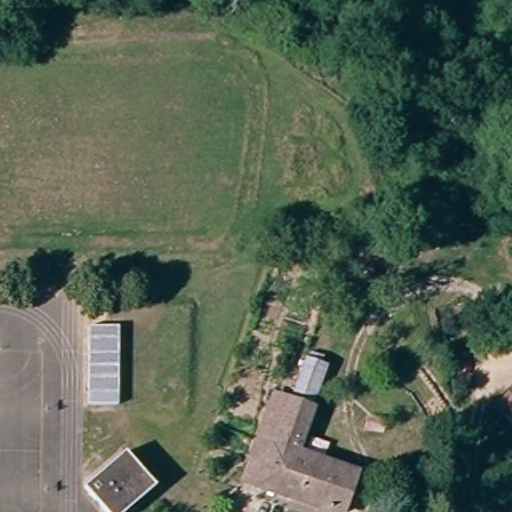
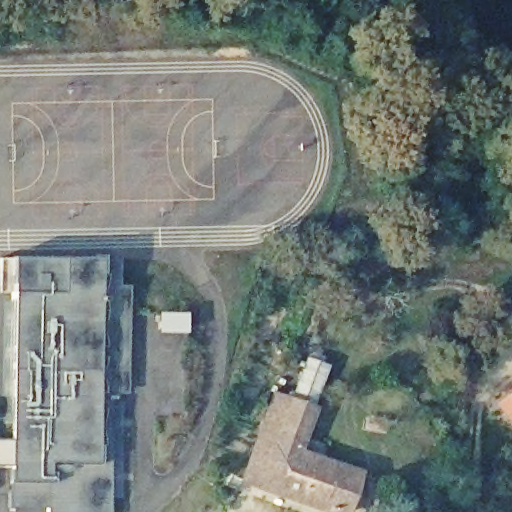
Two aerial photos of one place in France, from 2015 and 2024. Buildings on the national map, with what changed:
new [(11,413),(15,257),(100,259),(118,257),(117,286),(127,285),(126,394),(111,394),(109,512),(48,512),(48,507),(9,507),(9,490),(0,489),(0,413),(11,413)]
demolished [(126,407),(97,407),(97,334),(126,334),(126,407)]
unchanged [(322,370),(313,396),(294,389),(303,364),(305,357),(323,364),(324,364),(322,370)]
new [(512,425),(494,404),(512,390),(512,425)]
unchanged [(241,480),(273,392),(289,398),(257,486),(241,480)]
demolished [(509,395),(512,398),(512,420),(499,404),(509,395)]
unchanged [(257,486),(289,398),(313,406),(296,451),(314,458),(297,500),(257,486)]
demolished [(89,487),(129,452),(146,473),(157,487),(144,498),(128,512),(111,512),(89,487)]
unchanged [(314,458),(357,473),(343,512),(332,512),(297,500),(314,458)]

